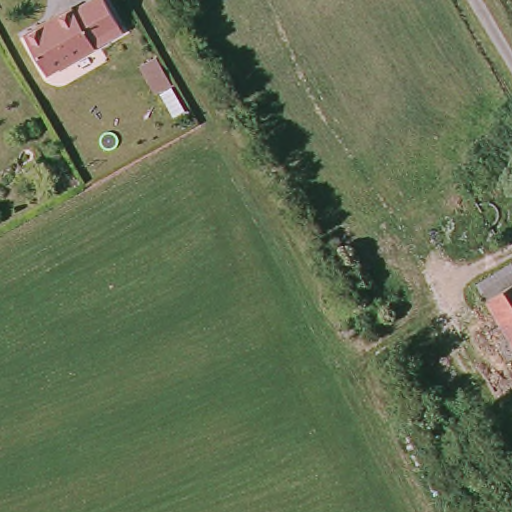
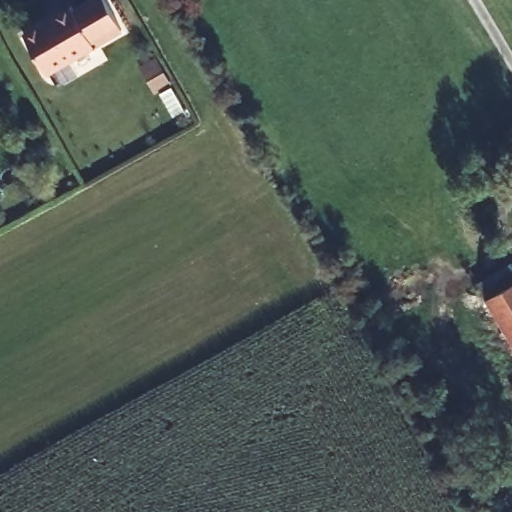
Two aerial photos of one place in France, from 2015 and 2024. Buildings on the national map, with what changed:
unchanged [(20,37),(53,21),(52,18),(69,10),(71,13),(97,0),(102,0),(114,23),(119,31),(92,46),(42,74),(20,37)]
unchanged [(487,300),(512,284),(512,340),(491,306),(487,300)]

